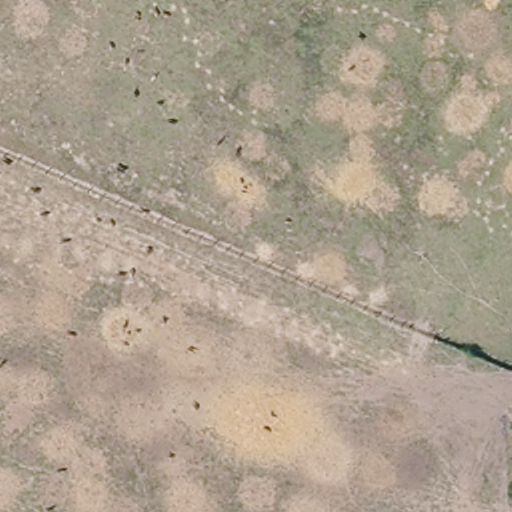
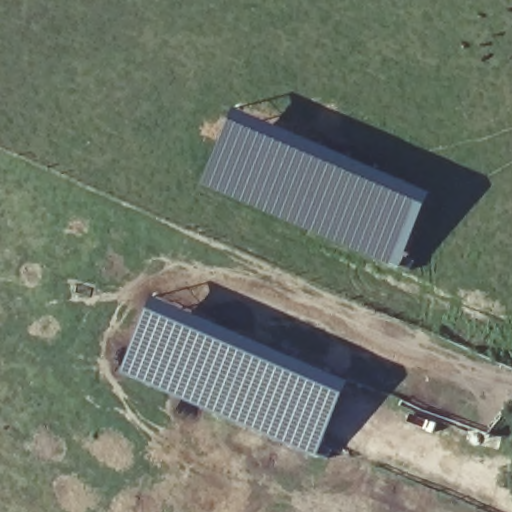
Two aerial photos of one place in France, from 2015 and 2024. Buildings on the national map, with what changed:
new [(434,191),(401,267),(203,185),(238,105),(434,191)]
new [(352,380),(317,456),(124,372),(157,293),(352,380)]

